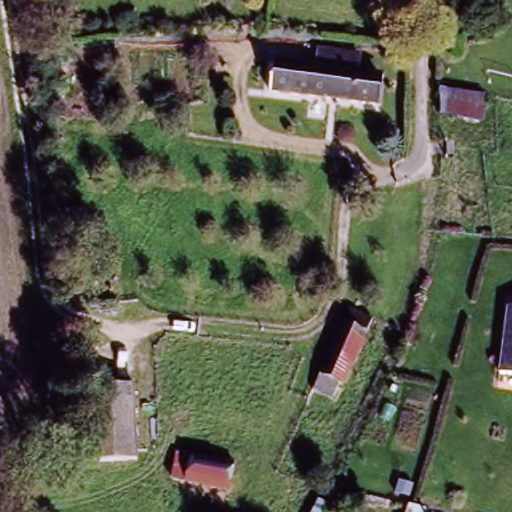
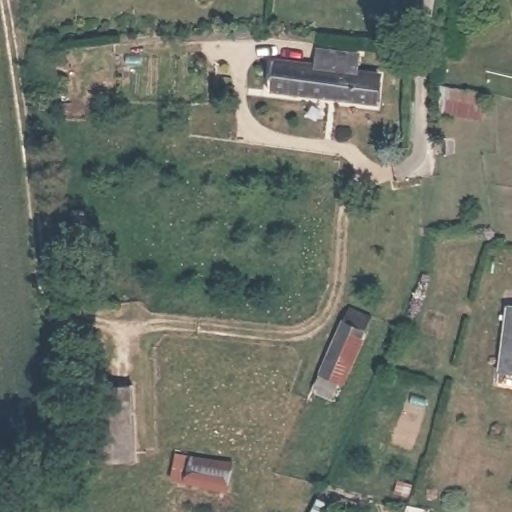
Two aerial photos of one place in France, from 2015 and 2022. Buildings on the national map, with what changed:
unchanged [(378,112),(265,101),(270,67),(322,73),(323,61),(363,66),(362,77),(382,80),(378,112)]
unchanged [(512,374),(501,373),(507,305),(512,305),(512,374)]
unchanged [(310,397),(337,330),(344,315),(367,325),(362,341),(333,408),(310,397)]
unchanged [(92,400),(129,392),(139,467),(98,471),(92,400)]
unchanged [(232,505),(179,488),(162,483),(170,452),(187,458),(240,474),(232,505)]

